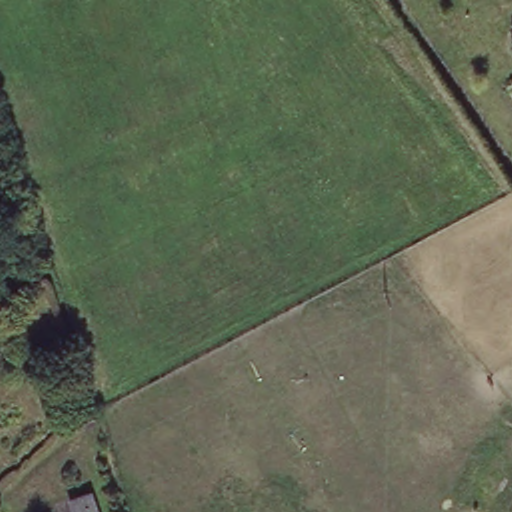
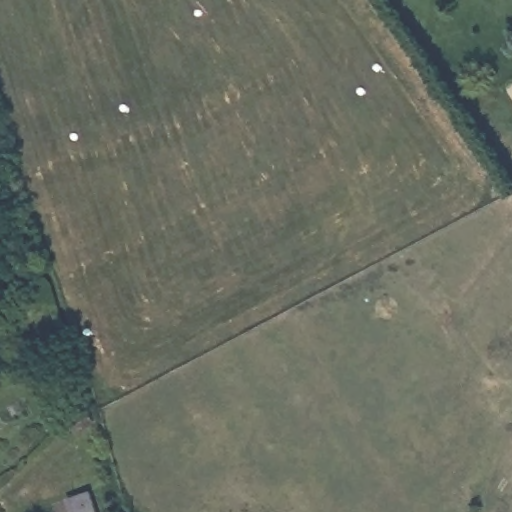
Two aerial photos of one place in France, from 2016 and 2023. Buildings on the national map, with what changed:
unchanged [(59,455),(46,439),(73,413),(77,421),(81,436),(59,455)]
unchanged [(89,489),(97,512),(70,512),(65,498),(89,489)]

